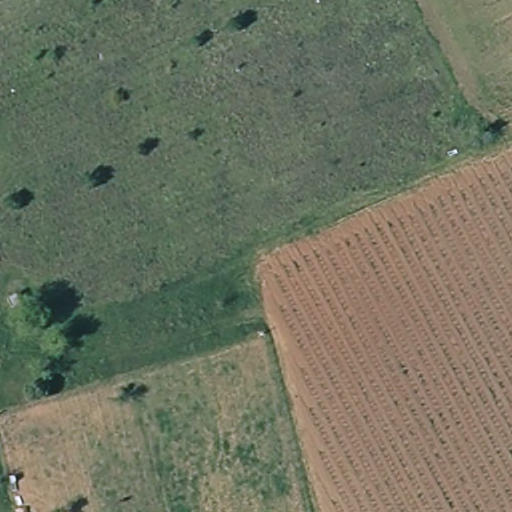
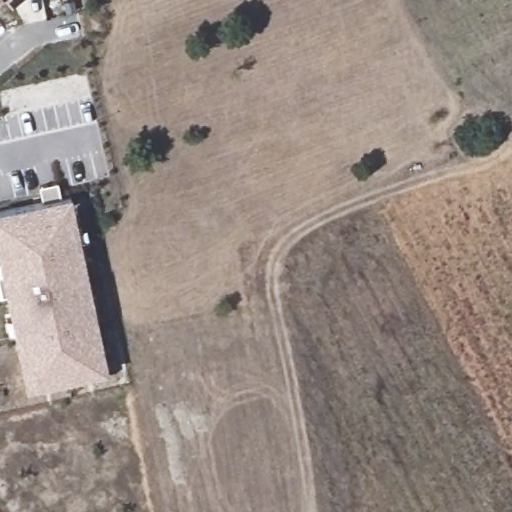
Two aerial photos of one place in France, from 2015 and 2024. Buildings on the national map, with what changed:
new [(6,0),(17,0),(11,5),(6,0)]
new [(73,197),(109,378),(28,393),(0,270),(0,212),(73,197)]
demolished [(12,310),(8,299),(18,296),(23,307),(12,310)]

